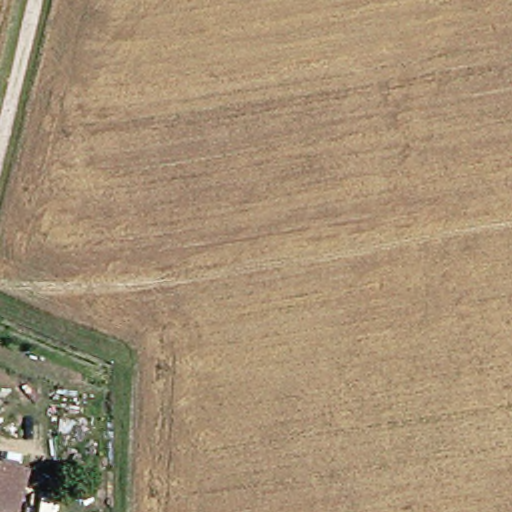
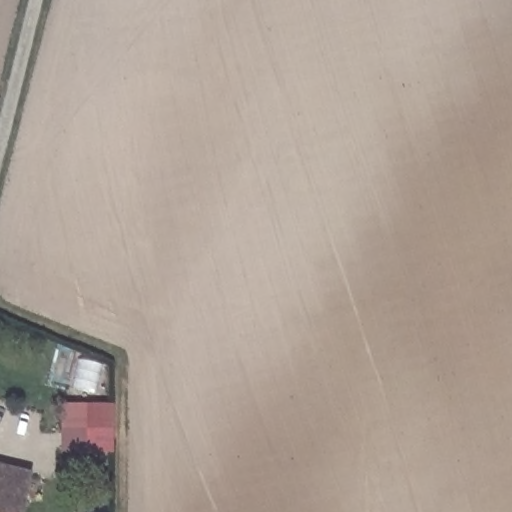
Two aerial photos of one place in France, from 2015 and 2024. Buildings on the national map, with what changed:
new [(111,403),(112,453),(61,453),(60,417),(56,417),(56,403),(86,403),(111,403)]
unchanged [(4,491),(0,490),(0,469),(35,477),(27,512),(1,512),(4,491)]
unchanged [(4,491),(1,512),(0,512),(0,490),(4,491)]

